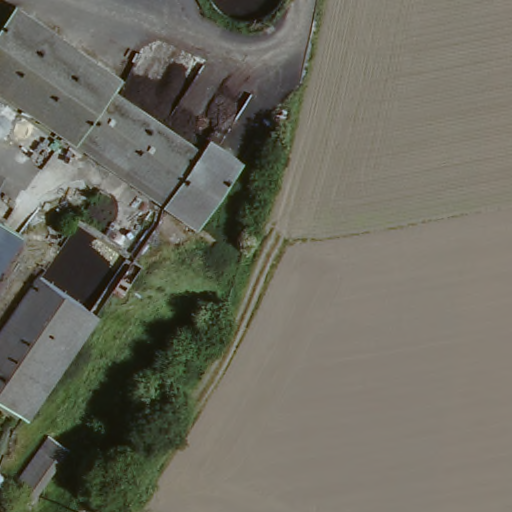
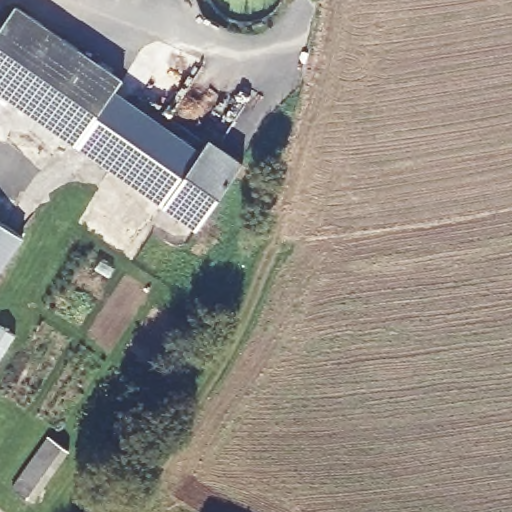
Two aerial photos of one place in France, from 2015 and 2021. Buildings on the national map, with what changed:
unchanged [(112,98),(198,153),(206,141),(241,163),(199,229),(0,101),(0,35),(12,15),(121,85),(112,98)]
unchanged [(0,279),(0,225),(26,243),(0,279)]
demolished [(139,269),(118,296),(108,290),(128,261),(139,269)]
demolished [(28,416),(0,395),(0,340),(46,277),(101,318),(28,416)]
unchanged [(47,437),(69,454),(31,504),(9,487),(47,437)]

